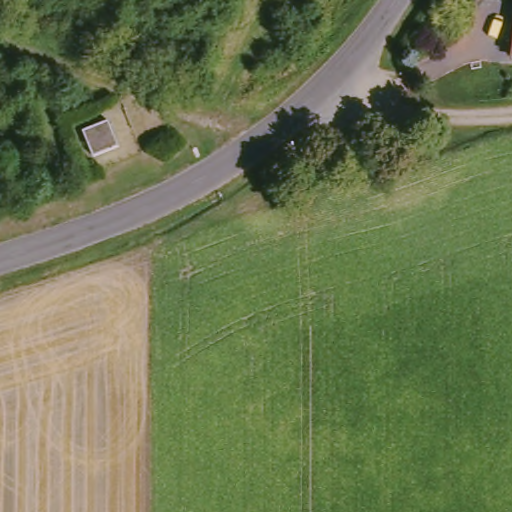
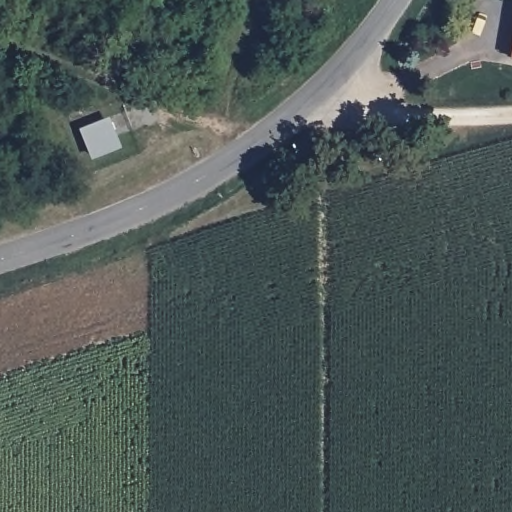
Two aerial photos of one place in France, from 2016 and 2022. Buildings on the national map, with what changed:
unchanged [(112,123),(122,149),(100,157),(89,130),(112,123)]

